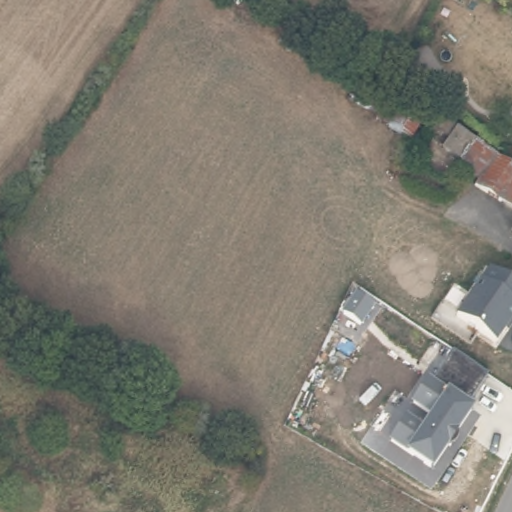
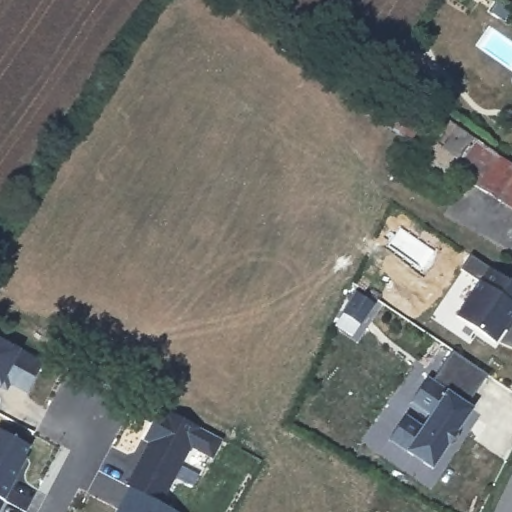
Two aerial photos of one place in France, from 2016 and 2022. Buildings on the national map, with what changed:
unchanged [(348,100),(369,72),(430,112),(408,143),(348,100)]
unchanged [(481,185),(457,171),(459,166),(428,149),(442,124),(512,166),(512,204),(510,209),(480,191),(481,185)]
unchanged [(512,204),(512,210),(510,209),(512,204)]
unchanged [(506,326),(497,341),(457,312),(490,266),(512,283),(512,325),(510,328),(506,326)]
new [(43,361),(25,395),(9,386),(7,390),(2,387),(0,387),(0,337),(22,347),(43,361)]
unchanged [(469,405),(473,407),(433,470),(413,456),(410,457),(389,442),(407,415),(423,425),(429,415),(411,402),(429,373),(436,378),(454,350),(488,373),(469,405)]
new [(126,485),(148,442),(142,439),(160,407),(222,440),(212,460),(190,447),(161,503),(177,512),(115,512),(129,487),(126,485)]
new [(30,446),(25,455),(27,457),(4,500),(3,498),(0,497),(0,429),(30,446)]

